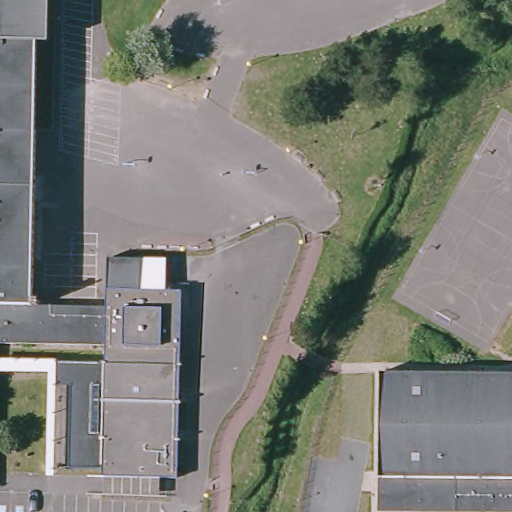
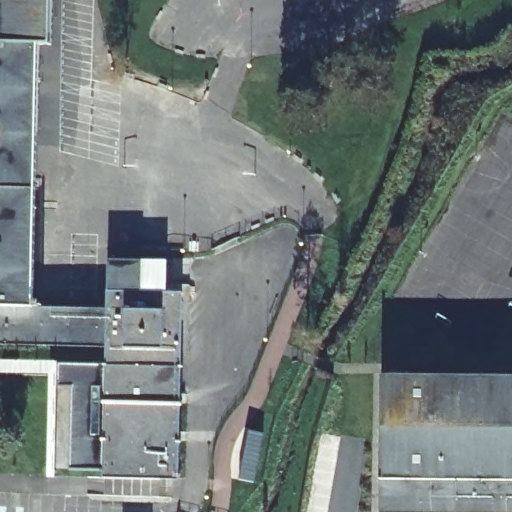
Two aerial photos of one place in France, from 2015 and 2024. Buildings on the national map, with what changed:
unchanged [(50,0),(47,37),(36,122),(33,122),(29,295),(36,295),(36,300),(102,302),(104,259),(142,257),(143,286),(178,286),(174,473),(156,472),(101,471),(69,468),(71,386),(60,385),(62,364),(101,365),(101,341),(0,339),(0,0),(50,0)]
unchanged [(375,511),(377,373),(512,374),(512,512),(421,512),(375,511)]
new [(247,433),(263,434),(254,485),(238,482),(247,433)]

